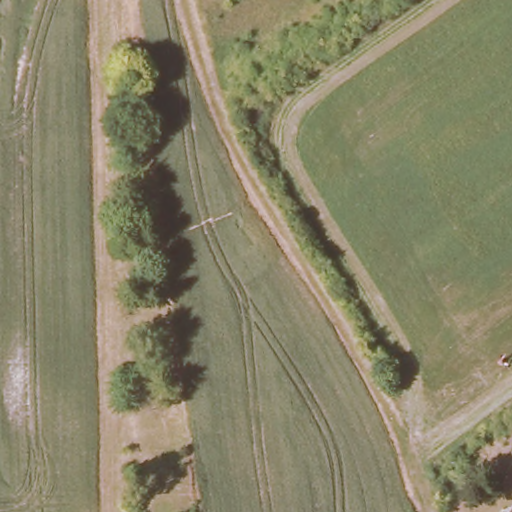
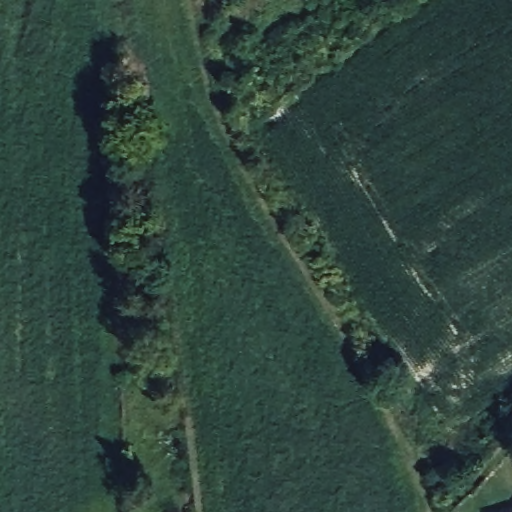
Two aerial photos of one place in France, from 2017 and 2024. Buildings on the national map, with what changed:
unchanged [(512,509),(512,512),(507,512),(510,508),(512,509)]

